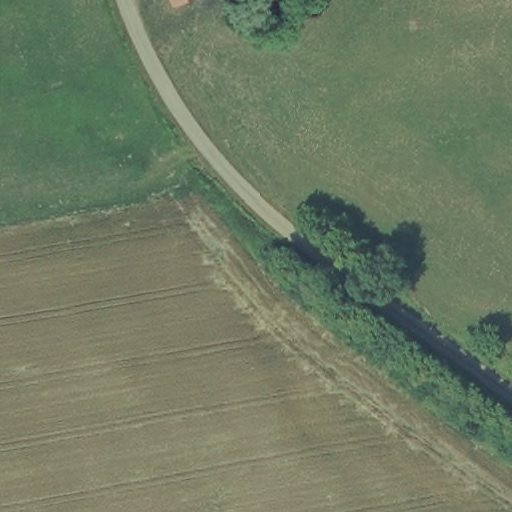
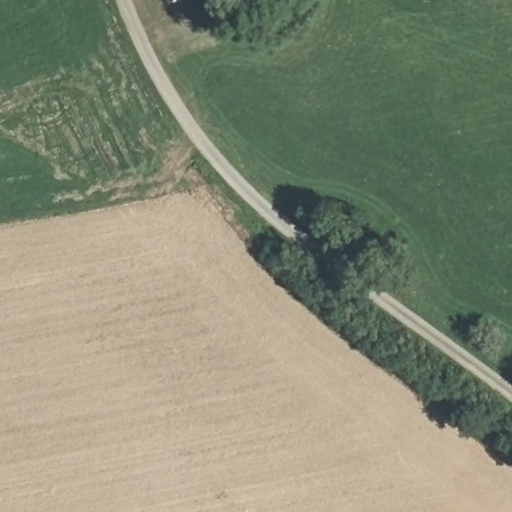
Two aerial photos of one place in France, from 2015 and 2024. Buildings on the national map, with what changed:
unchanged [(175,8),(171,0),(191,0),(175,8)]

